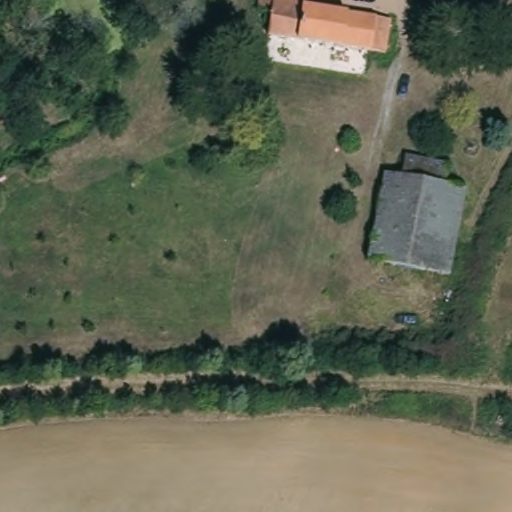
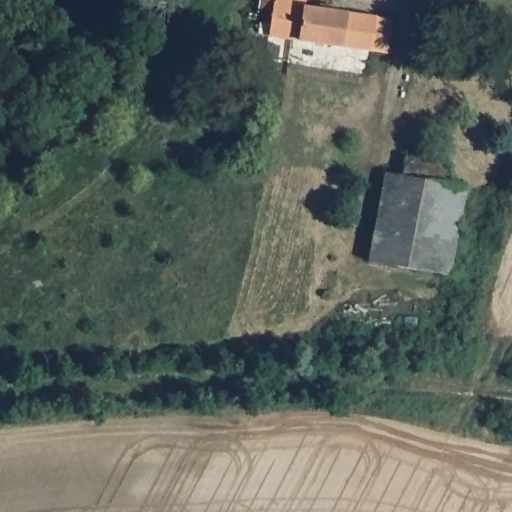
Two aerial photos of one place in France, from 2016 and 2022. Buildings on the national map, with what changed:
unchanged [(277,0),(277,4),(288,6),(289,0),(311,0),(309,8),(397,22),(389,55),(259,34),(265,0),(277,0)]
unchanged [(456,278),(378,262),(397,176),(411,178),(416,157),(459,167),(455,186),(475,191),(456,278)]

